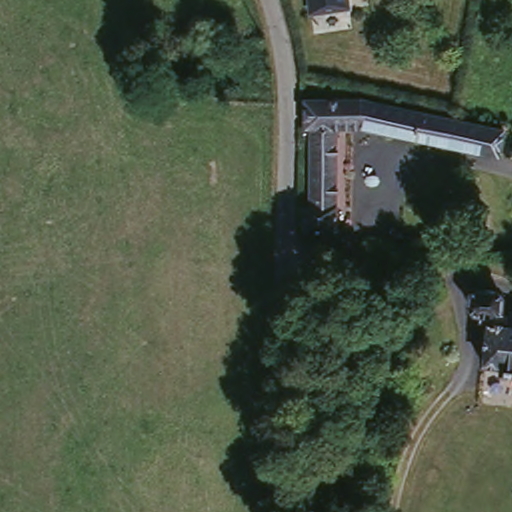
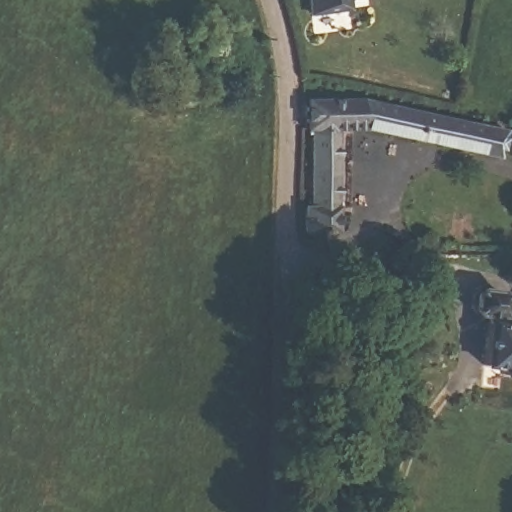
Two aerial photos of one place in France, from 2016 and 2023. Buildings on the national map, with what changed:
unchanged [(297,7),(297,0),(338,0),(337,11),(297,7)]
unchanged [(313,204),(312,96),(380,105),(510,138),(500,167),(356,130),(342,128),(336,232),(302,231),(300,205),(313,204)]
unchanged [(327,272),(328,278),(323,279),(324,286),(328,288),(327,296),(294,294),(295,270),(327,272)]
unchanged [(485,370),(487,333),(461,323),(465,288),(503,291),(504,320),(512,321),(512,374),(485,370)]

